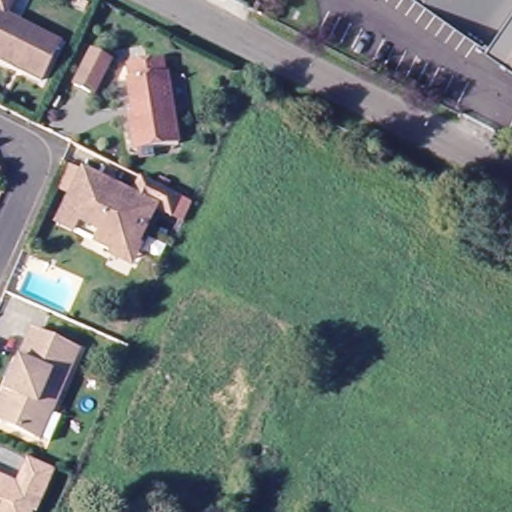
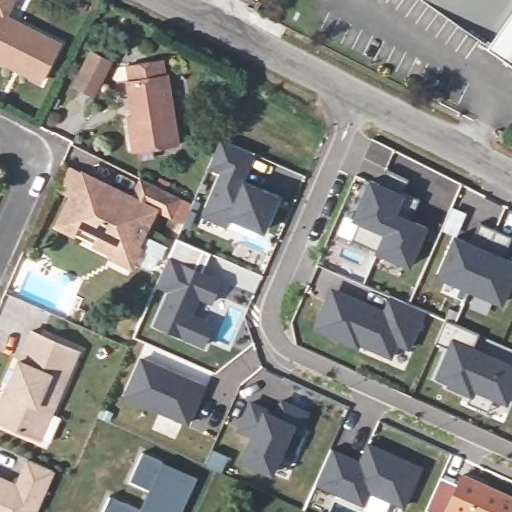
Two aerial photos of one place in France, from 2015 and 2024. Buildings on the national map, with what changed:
unchanged [(3,21),(58,49),(39,86),(0,66),(0,0),(14,0),(3,21)]
unchanged [(512,57),(426,0),(512,0),(512,57)]
unchanged [(111,66),(93,99),(74,88),(91,56),(111,66)]
unchanged [(125,69),(161,63),(163,78),(165,78),(176,148),(132,156),(126,120),(131,119),(125,84),(128,84),(125,69)]
new [(216,179),(202,173),(215,144),(248,159),(237,186),(251,192),(250,195),(256,198),(258,195),(273,201),(259,236),(225,222),(221,231),(198,221),(216,179)]
unchanged [(74,201),(60,194),(71,171),(85,177),(115,191),(126,196),(132,199),(141,179),(181,199),(173,217),(157,210),(139,249),(123,241),(116,256),(77,237),(60,229),(64,222),(74,201)]
new [(366,185),(375,189),(381,174),(404,185),(399,198),(416,205),(407,225),(422,232),(406,270),(374,257),(382,238),(349,224),(366,185)]
new [(467,248),(476,227),(508,241),(499,263),(512,268),(512,276),(499,308),(434,280),(451,242),(467,248)]
new [(152,290),(171,244),(199,257),(205,259),(197,278),(217,287),(207,308),(193,301),(184,320),(209,330),(200,351),(151,331),(166,296),(152,290)]
new [(322,322),(316,319),(322,307),(327,310),(333,297),(371,313),(370,315),(380,319),(388,301),(421,316),(405,353),(394,348),(388,362),(356,348),(354,353),(316,336),(322,322)]
new [(446,388),(434,382),(446,354),(432,348),(442,324),(476,339),(469,354),(483,360),(482,364),(488,366),(489,362),(512,372),(512,390),(504,409),(491,403),(485,417),(464,408),(467,400),(445,390),(446,388)]
unchanged [(0,428),(0,407),(1,404),(0,403),(4,393),(6,394),(32,332),(63,346),(77,352),(71,367),(49,418),(38,445),(31,442),(0,428)]
new [(138,365),(199,391),(189,413),(191,414),(185,430),(122,402),(138,365)]
new [(277,411),(282,400),(310,411),(296,453),(286,448),(273,474),(240,458),(250,435),(236,428),(249,400),(277,411)]
new [(327,455),(347,463),(345,468),(353,471),(354,469),(358,467),(366,449),(419,472),(401,511),(367,496),(361,509),(313,488),(327,455)]
new [(143,509),(149,488),(131,479),(141,453),(196,478),(181,512),(100,512),(108,495),(143,509)]
unchanged [(17,484),(30,457),(54,468),(35,512),(0,512),(0,477),(17,484)]
new [(462,473),(512,497),(512,512),(450,512),(446,510),(446,512),(429,512),(426,510),(440,475),(458,483),(462,473)]

